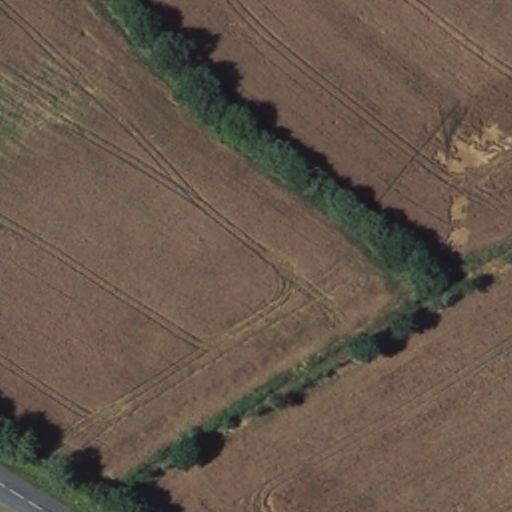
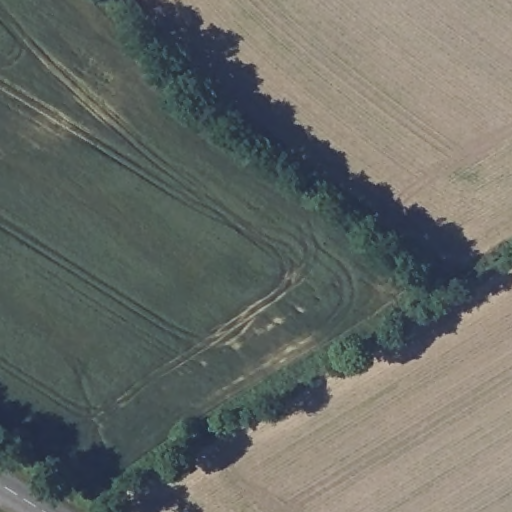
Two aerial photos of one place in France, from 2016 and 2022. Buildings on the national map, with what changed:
[]

